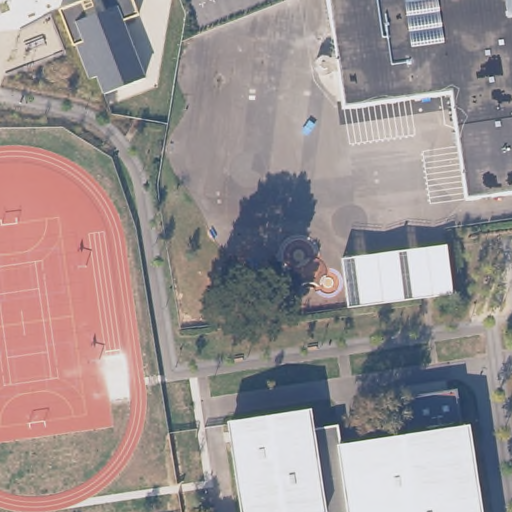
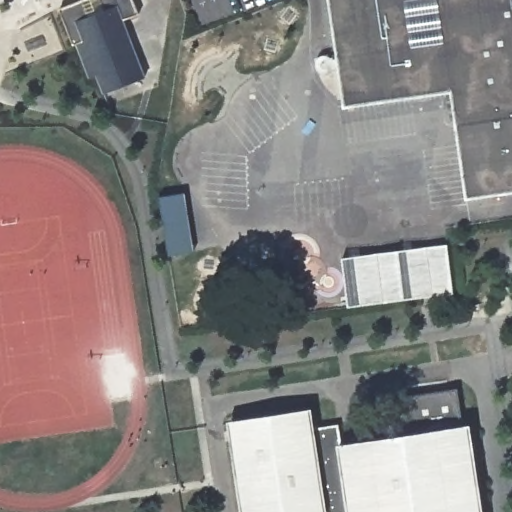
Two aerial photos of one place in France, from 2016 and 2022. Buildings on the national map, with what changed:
unchanged [(126,20),(145,80),(104,94),(98,75),(91,77),(80,41),(76,43),(64,5),(80,0),(137,0),(142,15),(126,20)]
unchanged [(466,194),(450,85),(343,101),(329,0),(512,0),(512,187),(466,194)]
new [(185,190),(194,250),(166,255),(157,195),(185,190)]
unchanged [(455,293),(348,307),(341,256),(448,242),(455,293)]
unchanged [(509,321),(504,289),(512,288),(512,321),(509,321)]
unchanged [(315,428),(344,424),(347,445),(470,427),(482,512),(250,512),(237,421),(312,410),(315,428)]

